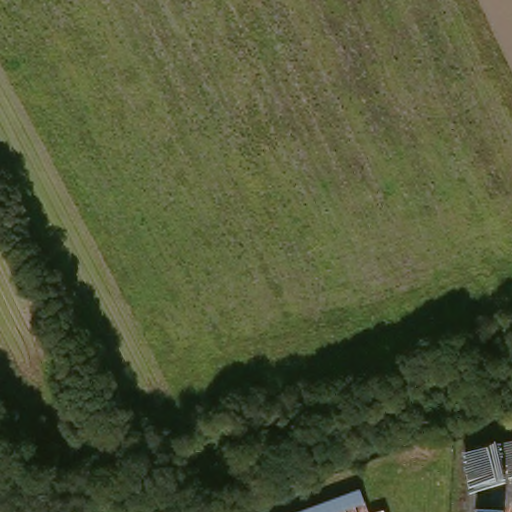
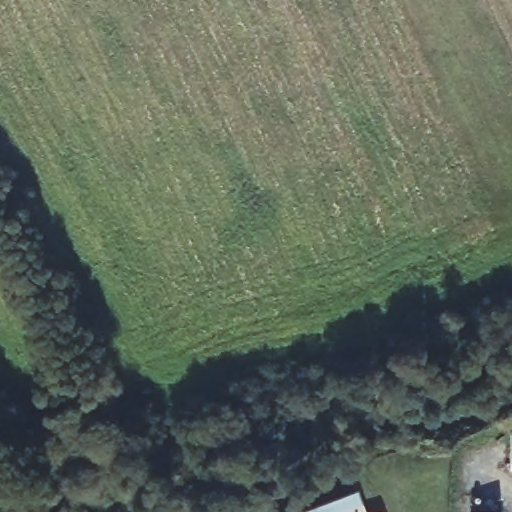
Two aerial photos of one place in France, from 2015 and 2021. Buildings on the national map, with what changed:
unchanged [(372,501),(345,512),(306,512),(367,488),(372,501)]

